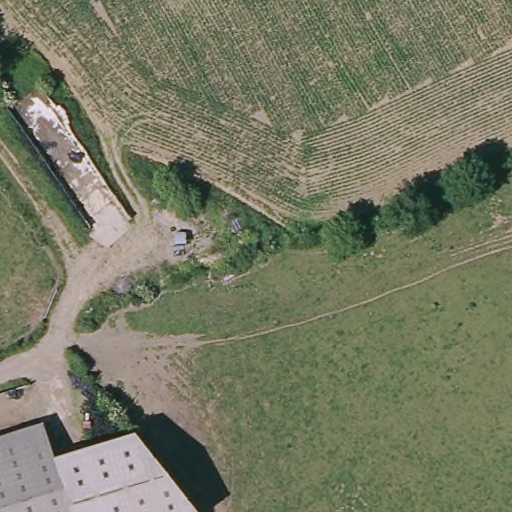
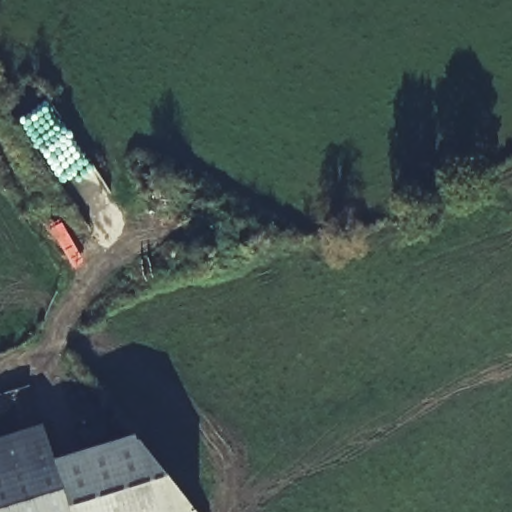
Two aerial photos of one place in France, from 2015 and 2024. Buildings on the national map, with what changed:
unchanged [(48,460),(132,429),(200,510),(195,512),(0,512),(0,438),(38,426),(48,460)]

